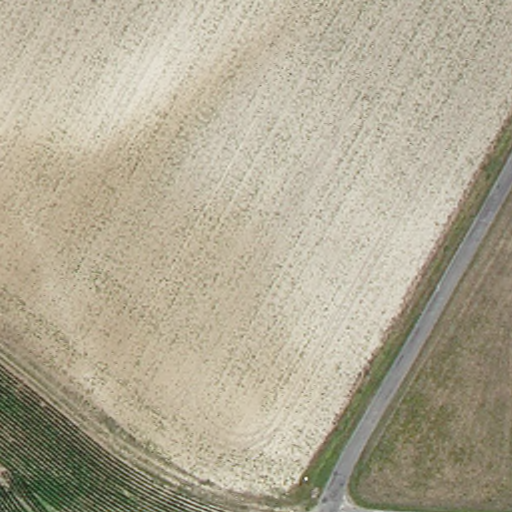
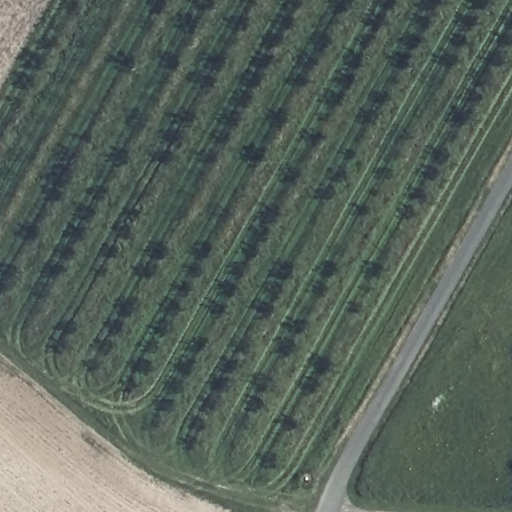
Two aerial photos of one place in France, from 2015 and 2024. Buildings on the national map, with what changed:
[]

